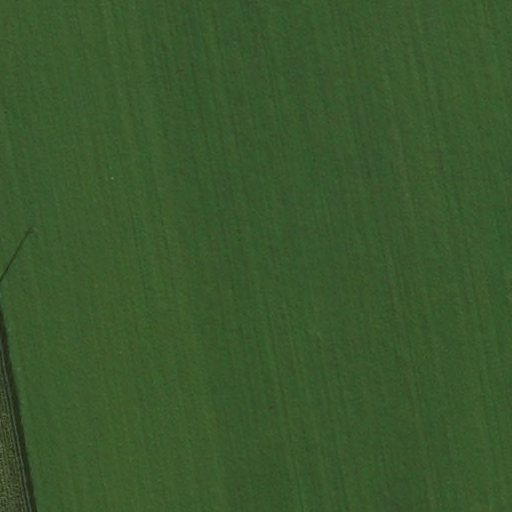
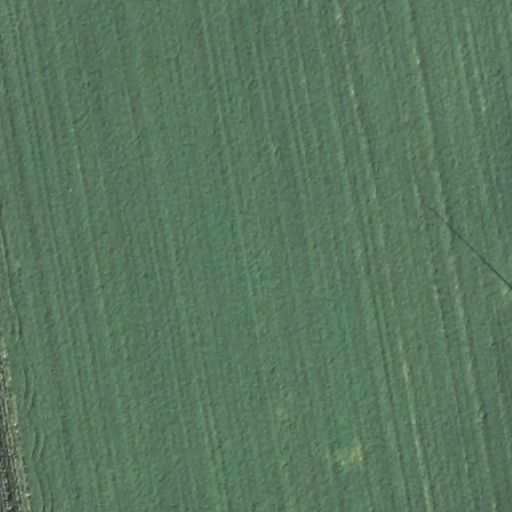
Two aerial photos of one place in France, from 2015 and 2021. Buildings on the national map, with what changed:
[]

